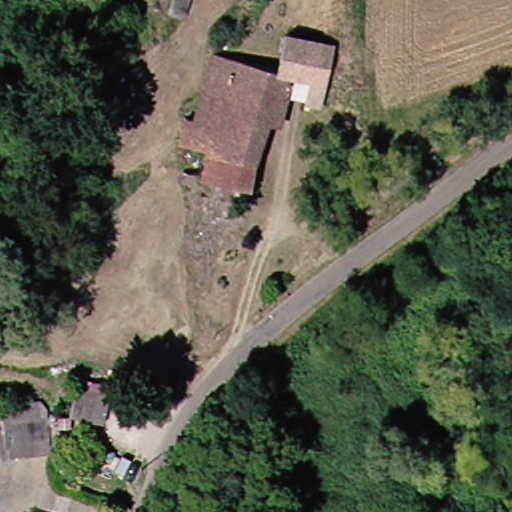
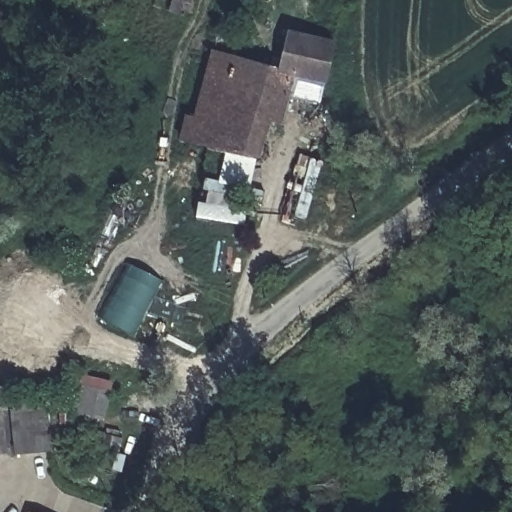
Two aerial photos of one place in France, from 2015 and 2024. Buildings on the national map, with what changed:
unchanged [(249,163),(203,150),(171,141),(177,116),(187,119),(199,74),(206,51),(226,56),(272,68),(281,33),(327,44),(311,107),(296,103),(278,99),(270,129),(258,126),(249,163)]
demolished [(435,136),(442,146),(423,158),(417,149),(435,136)]
unchanged [(244,184),(197,173),(203,150),(249,163),(244,184)]
new [(130,266),(163,280),(137,336),(104,323),(130,266)]
unchanged [(3,449),(0,433),(0,411),(49,404),(45,441),(3,449)]

